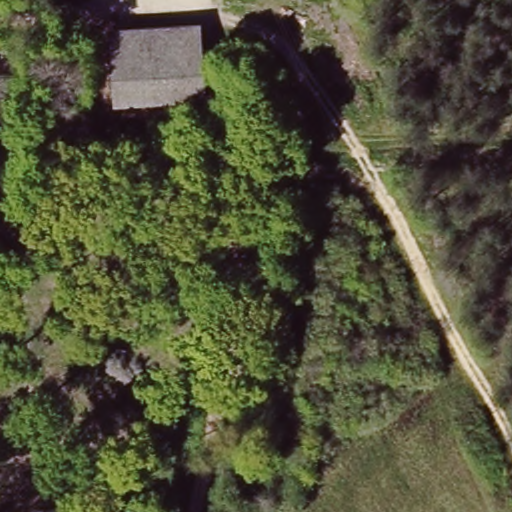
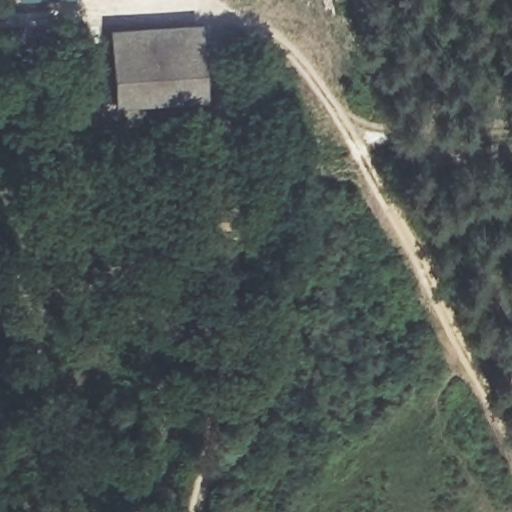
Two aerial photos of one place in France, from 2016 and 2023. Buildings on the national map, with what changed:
unchanged [(201,21),(206,97),(117,102),(110,26),(201,21)]

